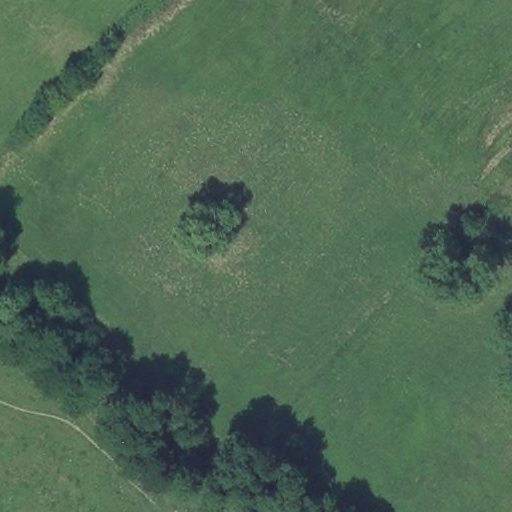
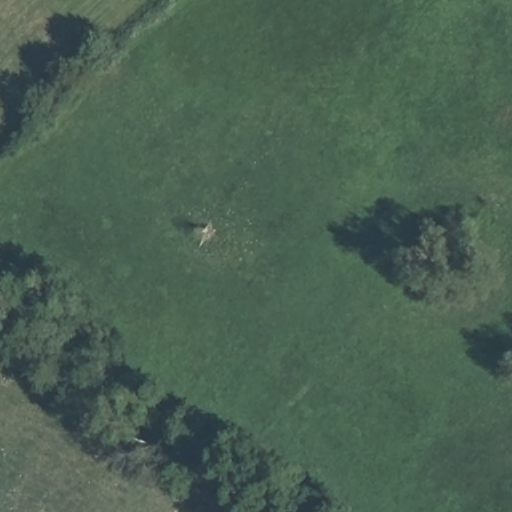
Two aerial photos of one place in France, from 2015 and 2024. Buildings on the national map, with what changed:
[]

